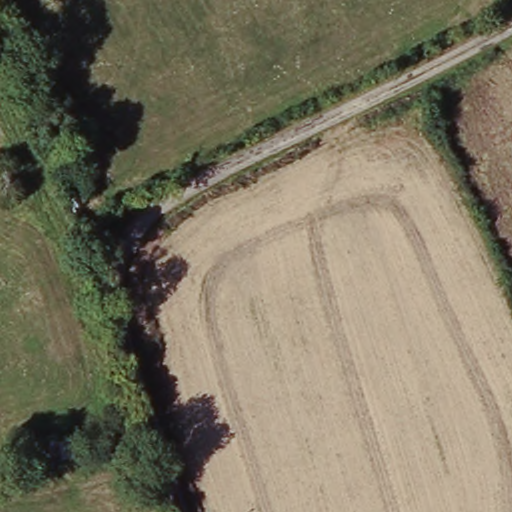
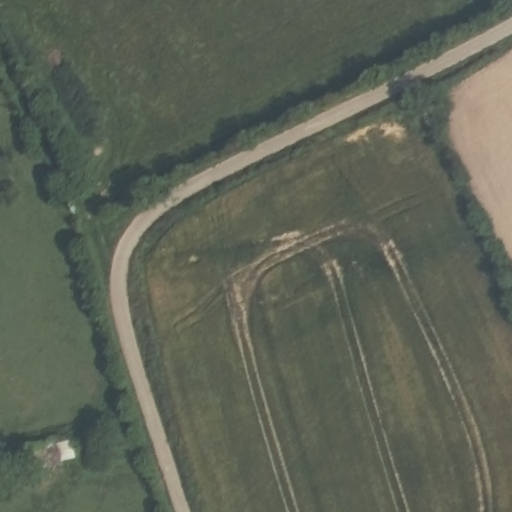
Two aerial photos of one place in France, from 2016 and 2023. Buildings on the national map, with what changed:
unchanged [(54,435),(63,464),(37,472),(28,443),(54,435)]

